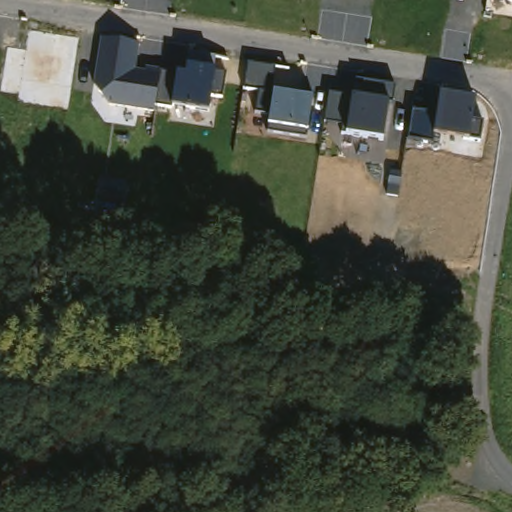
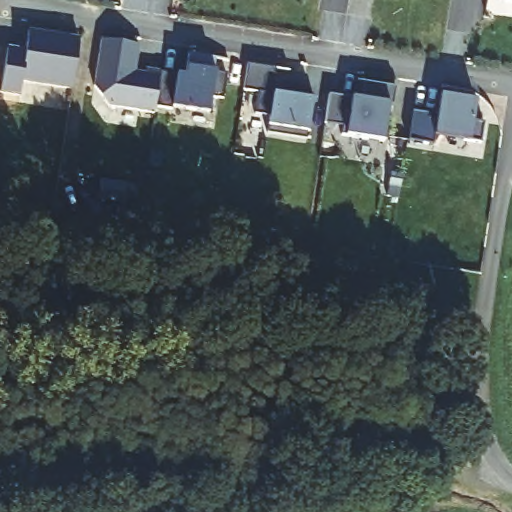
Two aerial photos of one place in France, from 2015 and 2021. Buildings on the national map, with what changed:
new [(22,53),(25,32),(77,40),(70,90),(18,82),(16,96),(0,94),(0,77),(4,50),(22,53)]
unchanged [(210,97),(207,112),(171,106),(171,109),(154,106),(153,114),(108,105),(93,85),(100,39),(139,45),(136,70),(146,72),(146,69),(176,75),(185,77),(187,66),(198,69),(198,55),(215,57),(214,72),(225,75),(222,99),(210,97)]
unchanged [(268,125),(268,115),(255,114),(259,91),(243,89),(248,65),(275,70),(273,94),(312,99),(306,132),(308,130),(306,138),(267,132),(268,125)]
unchanged [(330,94),(352,99),(353,80),(395,86),(392,105),(389,104),(384,141),(345,135),(347,125),(325,122),(330,94)]
unchanged [(436,116),(440,95),(476,100),(472,122),(482,123),(479,141),(469,142),(433,135),(431,142),(408,138),(413,111),(436,116)]

